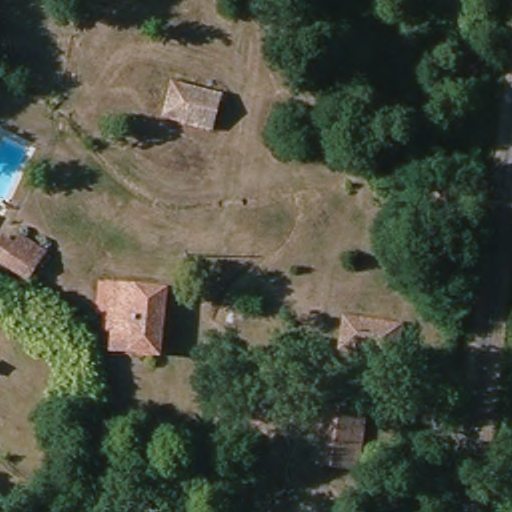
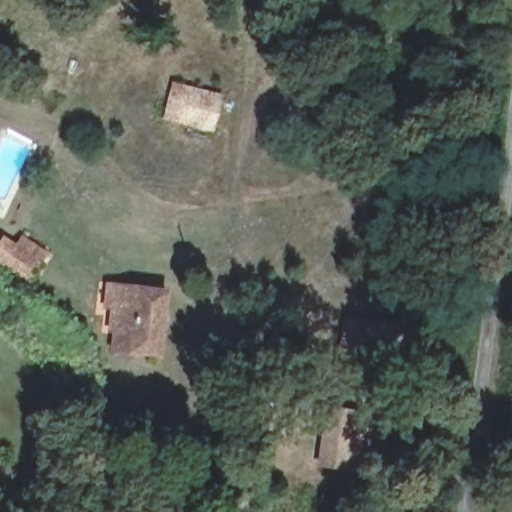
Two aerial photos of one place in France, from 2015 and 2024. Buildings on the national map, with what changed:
unchanged [(225,99),(218,129),(169,116),(177,85),(225,99)]
unchanged [(37,288),(0,268),(22,236),(52,254),(37,288)]
unchanged [(161,354),(110,351),(114,284),(163,288),(161,354)]
unchanged [(398,330),(395,354),(335,345),(338,321),(398,330)]
unchanged [(349,445),(327,442),(330,414),(353,418),(367,419),(362,446),(349,445)]

